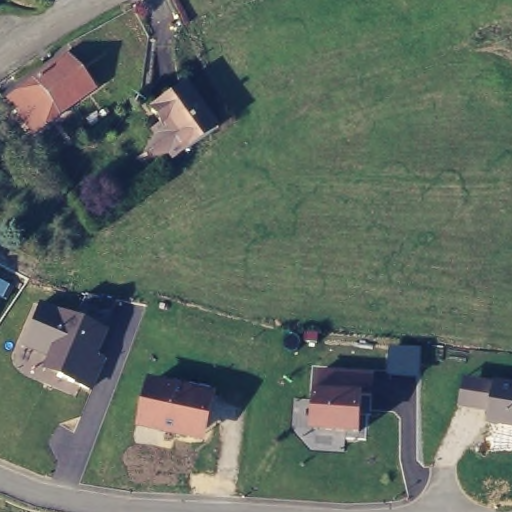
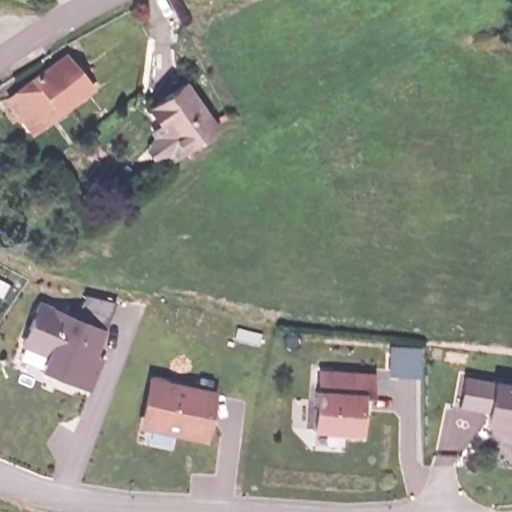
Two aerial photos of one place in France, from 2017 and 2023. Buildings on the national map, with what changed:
unchanged [(4,89),(62,46),(88,78),(40,114),(28,100),(17,107),(4,89)]
unchanged [(185,75),(216,119),(184,142),(164,114),(162,116),(150,99),(185,75)]
unchanged [(40,371),(47,353),(21,343),(39,298),(107,327),(97,353),(107,358),(92,389),(40,371)]
unchanged [(310,430),(316,366),(375,371),(374,397),(362,396),(358,434),(310,430)]
unchanged [(137,425),(147,373),(217,390),(205,440),(137,425)]
unchanged [(486,424),(487,413),(459,408),(464,377),(495,383),(495,379),(512,383),(512,429),(486,424)]

